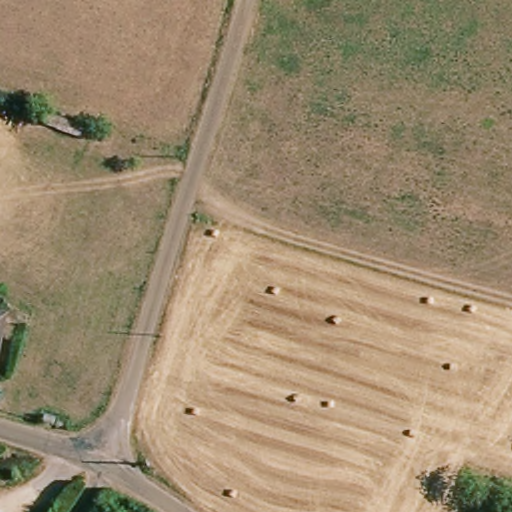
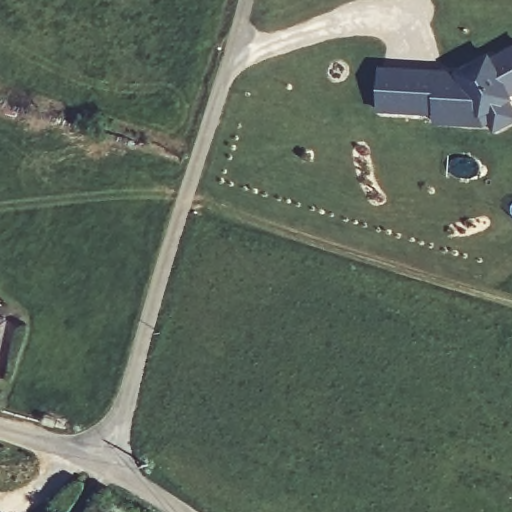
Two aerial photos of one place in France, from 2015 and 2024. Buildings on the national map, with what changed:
new [(461,72),(495,55),(497,58),(512,49),(512,125),(497,133),(493,127),(436,125),(437,114),(380,110),(382,67),(461,72)]
unchanged [(0,315),(5,316),(0,343),(0,315)]

